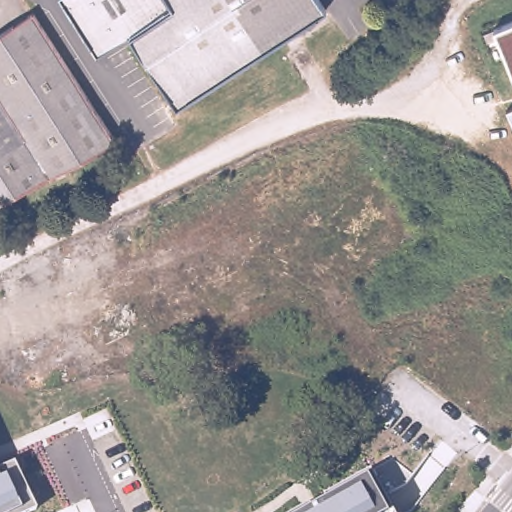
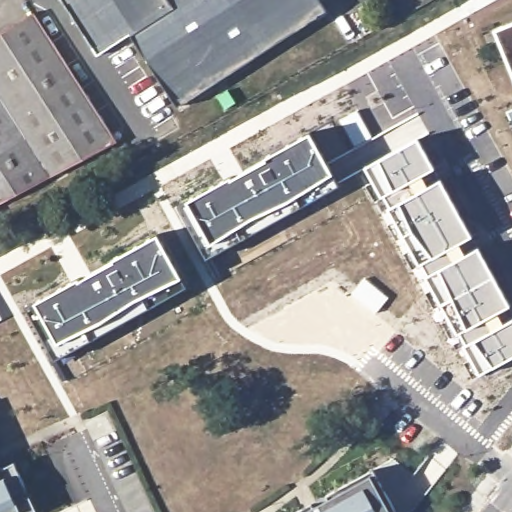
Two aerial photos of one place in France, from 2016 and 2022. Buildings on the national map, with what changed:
unchanged [(177,103),(130,33),(96,54),(61,0),(205,0),(244,60),(177,103)]
unchanged [(244,60),(205,0),(319,0),(324,8),(244,60)]
unchanged [(115,137),(0,202),(0,33),(35,11),(115,137)]
unchanged [(512,23),(512,77),(493,31),(512,23)]
new [(512,109),(512,132),(503,113),(512,109)]
new [(179,204),(310,132),(340,187),(206,257),(179,204)]
new [(416,137),(512,313),(512,355),(478,375),(462,346),(466,345),(460,332),(455,334),(423,276),(427,274),(421,263),(417,266),(386,208),(390,206),(383,195),(379,198),(363,166),(416,137)]
new [(28,309),(35,301),(161,232),(187,287),(56,363),(28,309)]
unchanged [(38,510),(34,512),(0,512),(0,470),(16,462),(38,510)]
unchanged [(394,512),(298,512),(372,471),(394,512)]

